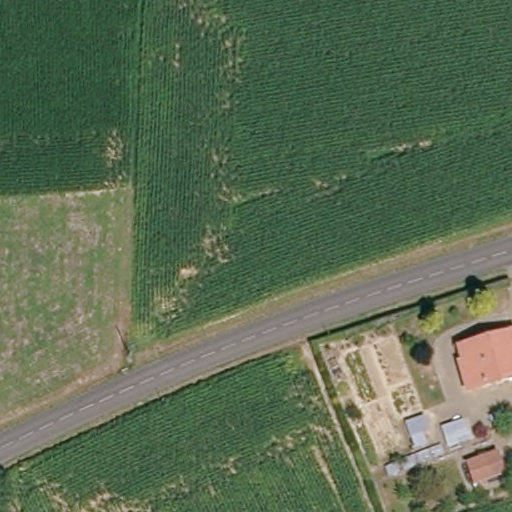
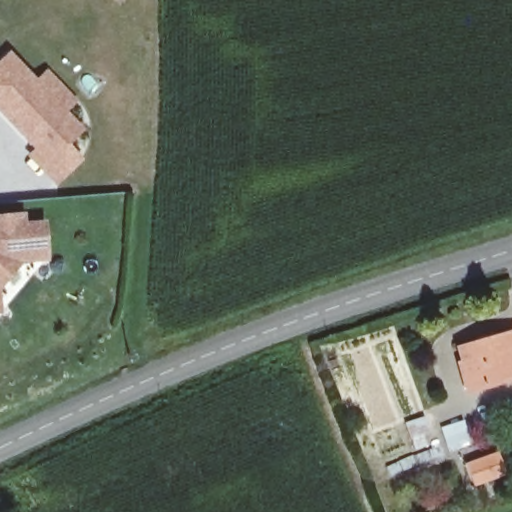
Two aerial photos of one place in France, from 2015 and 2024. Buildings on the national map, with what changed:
new [(35,79),(47,69),(77,102),(66,111),(85,130),(69,144),(84,161),(56,185),(28,154),(34,148),(0,113),(0,59),(8,51),(35,79)]
unchanged [(21,217),(22,226),(42,224),(46,258),(21,261),(0,286),(0,218),(21,217)]
unchanged [(458,366),(463,364),(459,348),(512,333),(512,377),(466,390),(458,366)]
unchanged [(502,473),(472,485),(465,464),(495,453),(502,473)]

